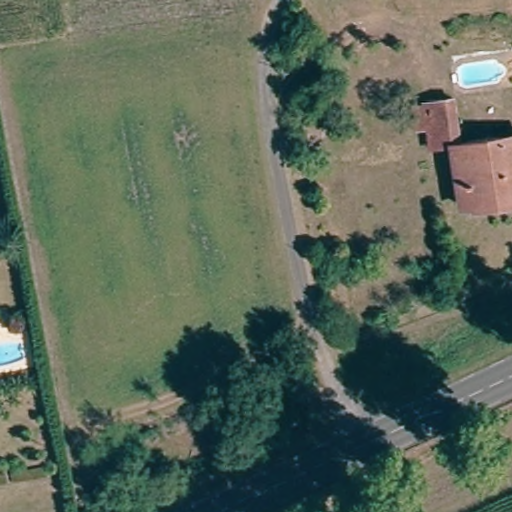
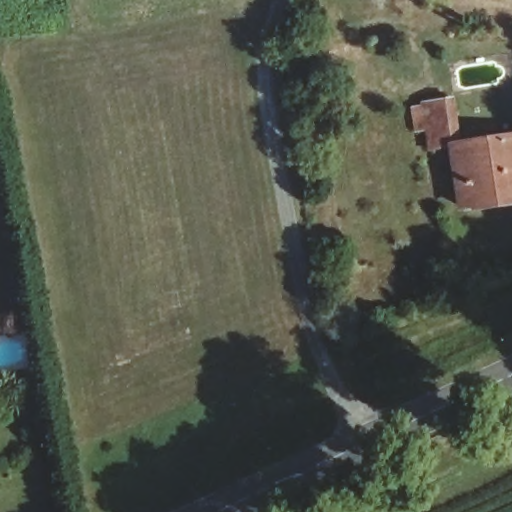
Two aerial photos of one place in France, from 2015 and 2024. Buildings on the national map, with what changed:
unchanged [(512,200),(466,207),(457,145),(434,148),(431,128),(421,130),(417,105),(427,104),(457,99),(463,143),(512,135),(512,200)]

